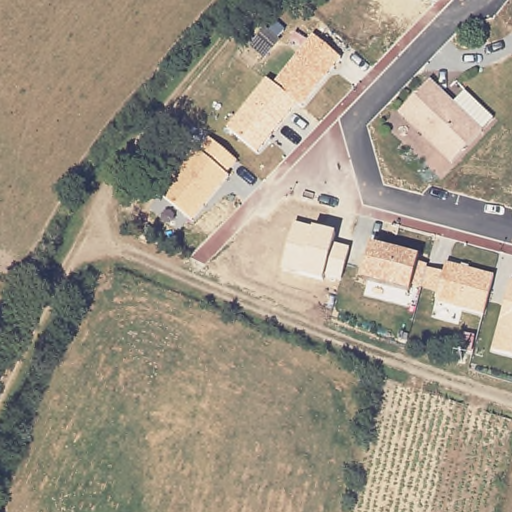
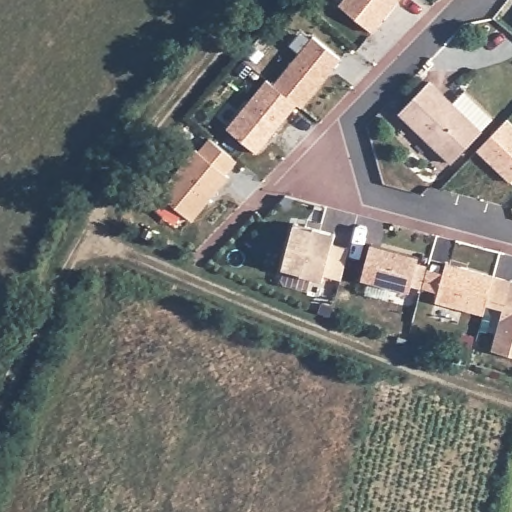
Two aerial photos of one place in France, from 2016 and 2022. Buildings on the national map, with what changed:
new [(373,33),(337,5),(342,0),(399,0),(373,33)]
unchanged [(265,79),(272,84),(311,36),(340,57),(301,106),(294,101),(257,154),(226,127),(265,79)]
unchanged [(428,82),(451,104),(462,91),(492,119),(481,131),(452,163),(399,113),(428,82)]
new [(476,151),(507,119),(512,124),(512,181),(510,183),(476,151)]
unchanged [(237,161),(225,173),(229,175),(192,221),(157,193),(194,148),(197,150),(208,138),(237,161)]
unchanged [(292,225),(334,232),(331,241),(348,246),(342,280),(323,274),(322,280),(280,270),(292,225)]
unchanged [(417,260),(428,264),(426,268),(442,272),(445,264),(512,280),(512,358),(490,353),(501,310),(488,307),(485,316),(434,303),(437,294),(410,286),(408,292),(360,280),(370,244),(419,255),(417,260)]

